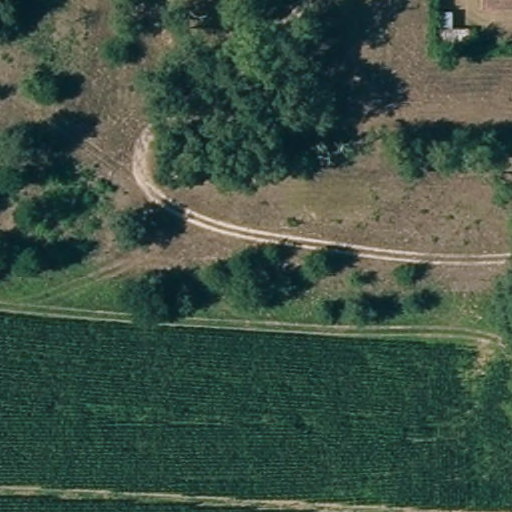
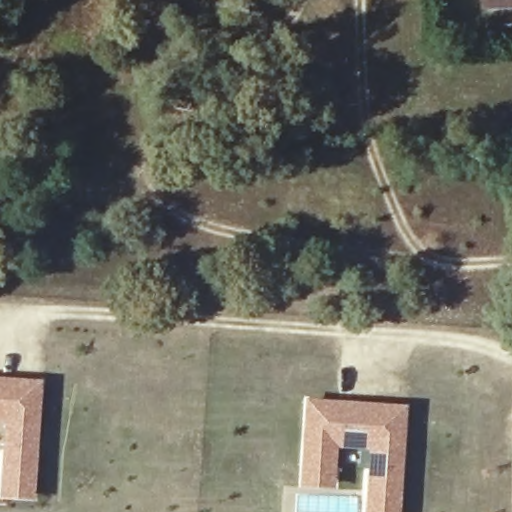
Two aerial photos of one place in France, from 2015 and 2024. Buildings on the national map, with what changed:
unchanged [(484,0),(512,0),(512,3),(484,3),(484,0)]
new [(44,380),(37,501),(2,499),(6,424),(0,424),(0,378),(44,380)]
new [(409,406),(401,512),(367,512),(370,450),(339,448),(336,488),(302,487),(306,398),(409,406)]

